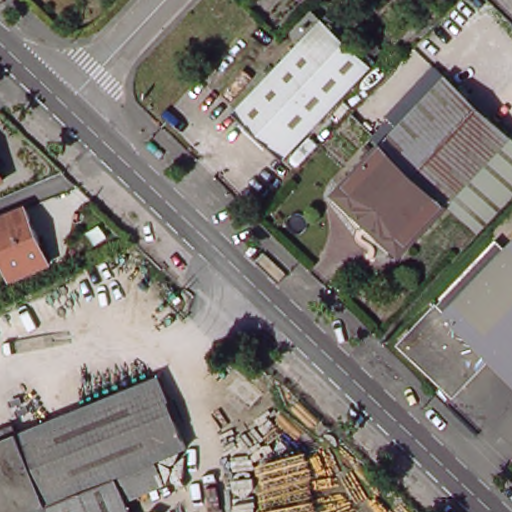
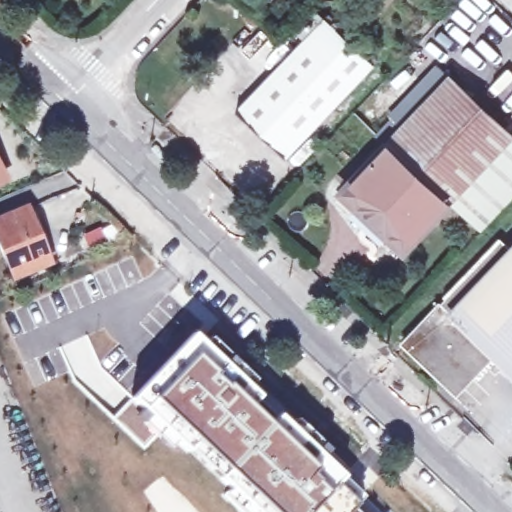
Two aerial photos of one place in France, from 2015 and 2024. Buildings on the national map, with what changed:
unchanged [(237,112),(329,15),(374,61),(284,157),(237,112)]
unchanged [(437,66),(448,77),(397,132),(386,122),(437,66)]
unchanged [(400,252),(338,195),(384,145),(373,136),(386,122),(397,132),(448,77),(509,134),(512,137),(512,210),(496,227),(467,201),(455,215),(444,204),(400,252)]
unchanged [(2,177),(0,178),(0,174),(2,177)]
demolished [(267,240),(264,205),(299,203),(302,235),(267,240)]
unchanged [(27,209),(51,263),(15,280),(0,247),(0,221),(27,209)]
unchanged [(460,317),(445,303),(495,251),(510,265),(460,317)]
unchanged [(458,401),(405,350),(442,311),(455,323),(460,317),(510,265),(512,263),(512,379),(495,363),(458,401)]
new [(2,337),(0,334),(0,308),(57,282),(69,307),(2,337)]
new [(125,390),(186,325),(195,325),(207,336),(209,334),(255,378),(254,380),(260,387),(255,393),(257,395),(276,415),(284,406),(349,468),(340,475),(379,512),(226,512),(214,500),(221,492),(172,445),(169,449),(133,417),(135,415),(123,403),(130,396),(125,390)]
demolished [(190,450),(118,480),(127,502),(131,512),(0,512),(0,444),(162,380),(190,450)]

